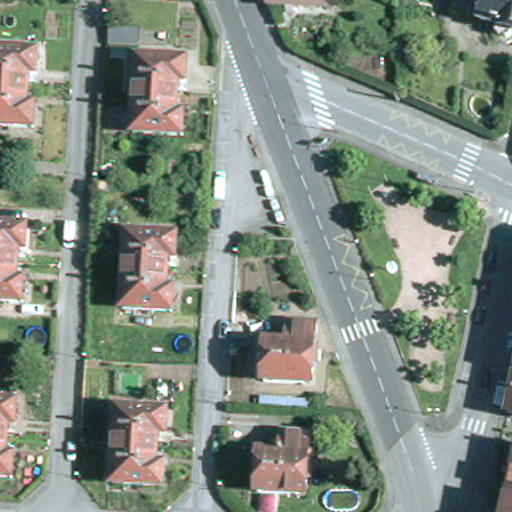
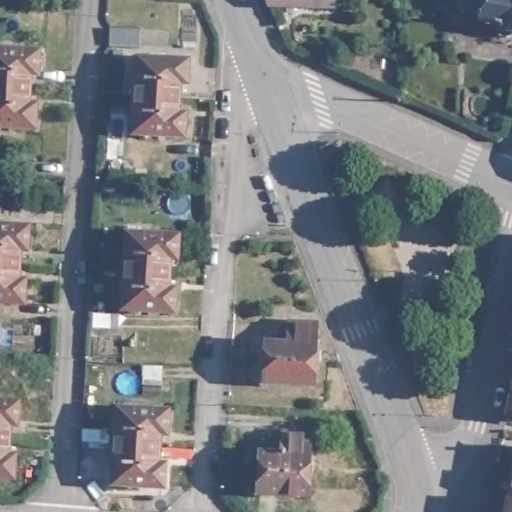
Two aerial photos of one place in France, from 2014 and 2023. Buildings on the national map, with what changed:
unchanged [(330,8),(268,6),(266,0),(331,0),(330,8)]
unchanged [(510,33),(503,32),(498,27),(500,21),(483,16),(483,12),(458,6),(459,0),(512,0),(512,32),(510,33)]
unchanged [(142,41),(140,57),(110,56),(112,39),(142,41)]
unchanged [(27,72),(26,86),(0,85),(0,48),(36,49),(35,73),(27,72)]
unchanged [(134,60),(183,62),(182,85),(173,85),(172,101),(131,99),(134,60)]
unchanged [(32,101),(30,124),(0,123),(0,85),(26,86),(25,101),(32,101)]
unchanged [(172,115),(180,116),(180,137),(128,135),(131,99),(172,101),(172,115)]
unchanged [(34,186),(14,186),(15,173),(35,175),(34,186)]
unchanged [(23,255),(16,254),(15,268),(0,268),(0,231),(25,232),(23,255)]
unchanged [(123,231),(174,234),(172,257),(166,256),(165,270),(121,268),(123,231)]
unchanged [(21,284),(20,306),(0,305),(0,268),(15,268),(14,283),(21,284)]
unchanged [(163,286),(171,286),(168,310),(119,307),(121,268),(165,270),(163,286)]
unchanged [(315,383),(267,380),(269,341),(292,343),(293,321),(320,323),(315,383)]
unchanged [(510,371),(512,360),(512,372),(510,371)]
unchanged [(500,412),(510,371),(512,372),(512,415),(500,412)]
unchanged [(178,392),(154,390),(156,374),(180,376),(178,392)]
unchanged [(13,426),(5,426),(4,440),(0,440),(0,402),(14,403),(13,426)]
unchanged [(109,414),(158,416),(157,439),(150,438),(148,452),(107,450),(109,414)]
unchanged [(307,495),(260,491),(262,452),(283,454),(285,431),(312,433),(307,495)]
unchanged [(3,457),(11,457),(10,478),(0,477),(0,440),(4,440),(3,457)]
unchanged [(147,468),(155,469),(153,491),(105,487),(107,450),(148,452),(147,468)]
unchanged [(512,468),(512,498),(505,496),(512,468)]
unchanged [(502,512),(505,496),(512,498),(512,512),(502,512)]

